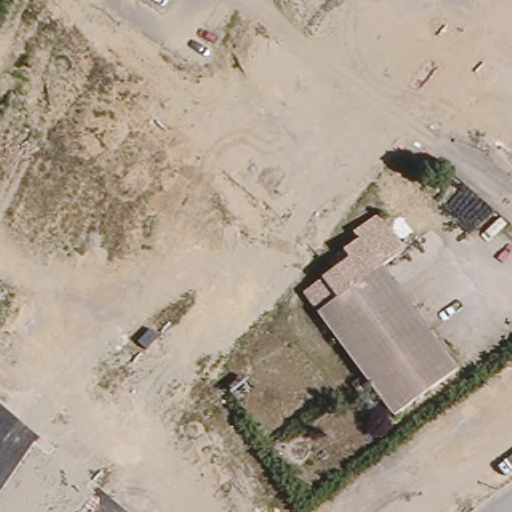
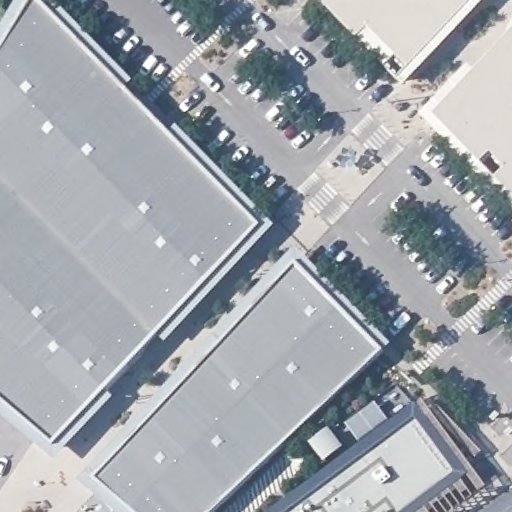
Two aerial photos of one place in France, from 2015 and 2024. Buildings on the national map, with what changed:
new [(126,91),(170,135),(178,129),(276,226),(169,344),(158,335),(105,391),(114,400),(58,461),(0,413),(0,34),(20,0),(51,0),(134,84),(126,91)]
demolished [(302,0),(308,4),(311,0),(348,0),(361,9),(345,31),(332,22),(285,88),(230,50),(265,0),(302,0)]
new [(320,0),(486,0),(406,86),(320,0)]
demolished [(48,46),(72,12),(141,70),(146,64),(171,81),(147,115),(48,46)]
new [(469,66),(476,71),(509,36),(512,29),(512,209),(421,117),(469,66)]
demolished [(377,150),(392,134),(423,159),(408,177),(377,150)]
demolished [(340,331),(326,311),(356,291),(363,293),(372,287),(373,282),(366,273),(382,262),(377,255),(401,239),(408,250),(386,266),(402,290),(340,331)]
new [(392,346),(214,512),(116,512),(80,481),(296,250),(392,346)]
demolished [(410,439),(340,331),(402,290),(472,396),(410,439)]
new [(362,443),(348,425),(376,403),(392,423),(418,406),(470,478),(423,512),(272,512),(362,443)]
demolished [(505,460),(512,454),(512,512),(469,512),(475,508),(439,458),(480,426),(505,460)]

